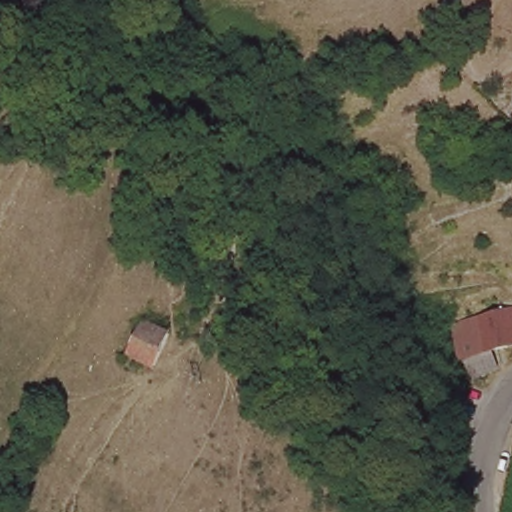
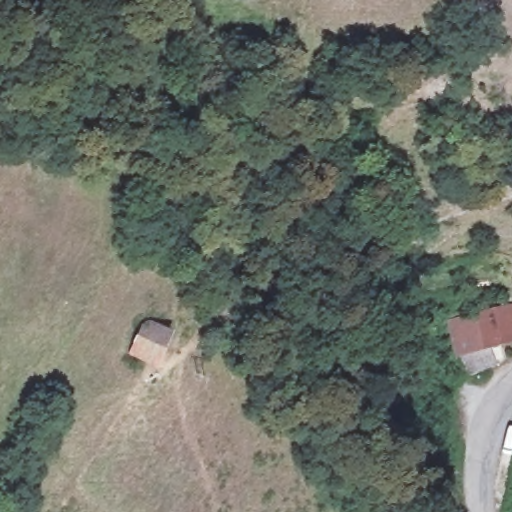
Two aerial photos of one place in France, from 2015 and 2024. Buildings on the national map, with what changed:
unchanged [(489,337),(495,354),(469,362),(454,317),(510,302),(512,307),(512,330),(489,337)]
unchanged [(174,334),(159,370),(150,365),(130,355),(141,321),(174,334)]

